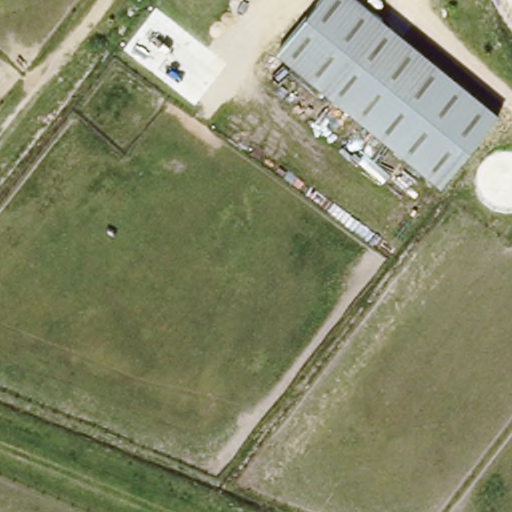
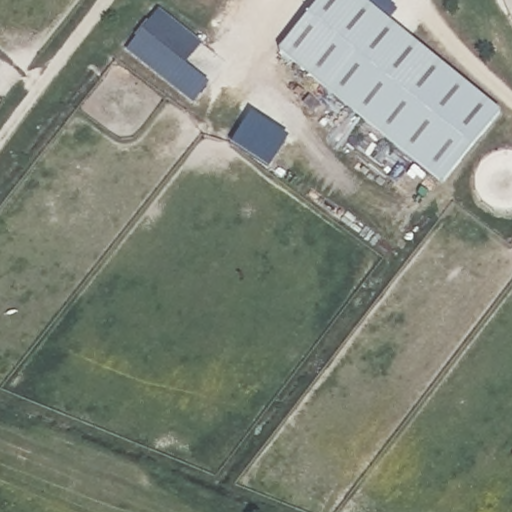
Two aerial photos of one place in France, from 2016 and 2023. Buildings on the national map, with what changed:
unchanged [(320,0),(354,0),(493,114),(437,182),(277,52),(320,0)]
new [(184,64),(208,83),(191,103),(123,51),(154,9),(200,43),(184,64)]

